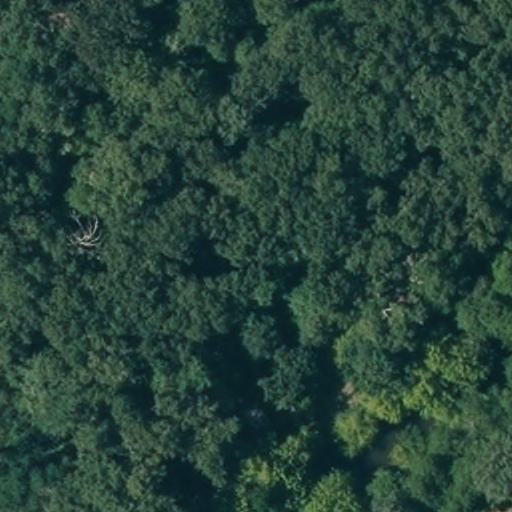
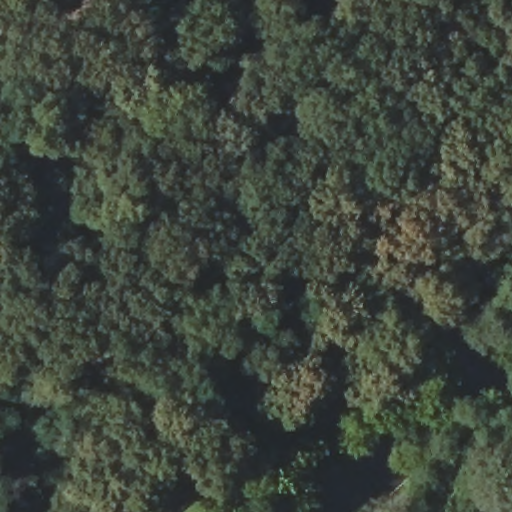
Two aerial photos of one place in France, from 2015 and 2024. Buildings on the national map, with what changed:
[]

